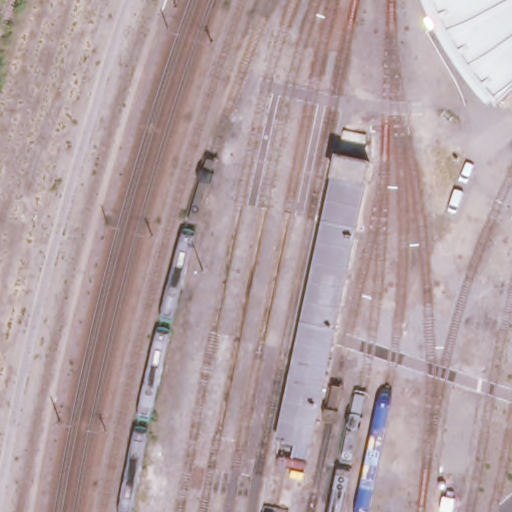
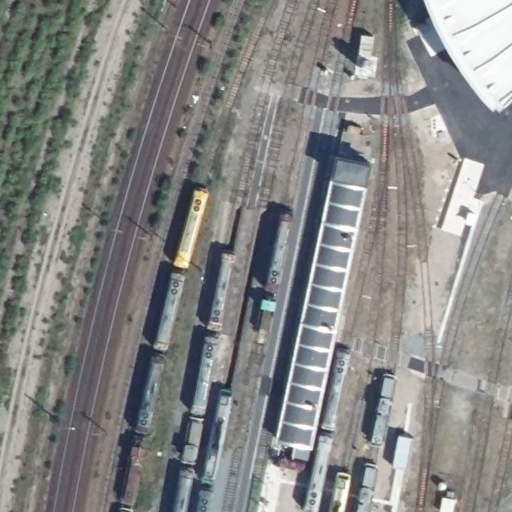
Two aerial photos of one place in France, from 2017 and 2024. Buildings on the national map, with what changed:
unchanged [(442,21),(433,0),(512,0),(512,89),(498,103),(467,62),(442,21)]
unchanged [(330,181),(325,180),(333,145),(380,154),(312,447),(308,445),(304,469),(274,465),(330,181)]

